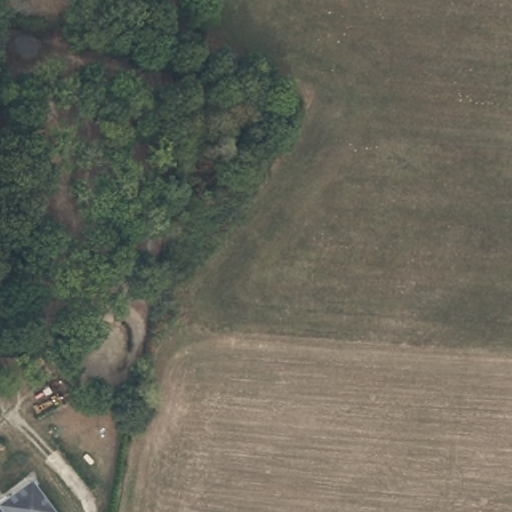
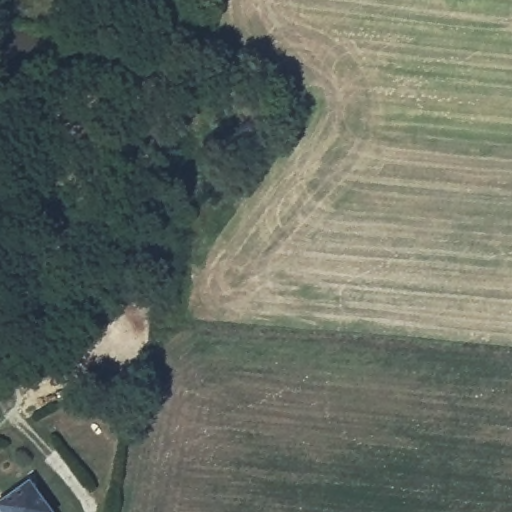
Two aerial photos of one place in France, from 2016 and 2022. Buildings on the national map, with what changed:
unchanged [(46,512),(0,512),(0,505),(25,485),(46,512)]

